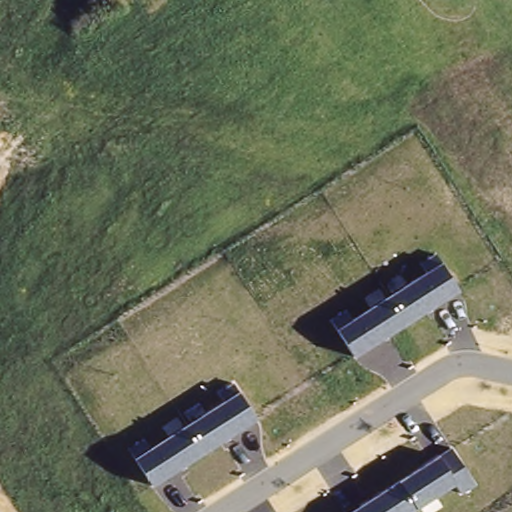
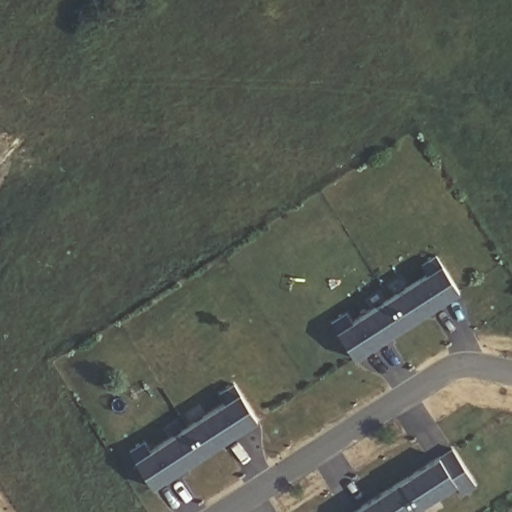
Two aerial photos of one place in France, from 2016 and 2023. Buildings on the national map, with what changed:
unchanged [(333,322),(348,312),(353,319),(428,270),(423,262),(437,253),(460,290),(355,357),(333,322)]
unchanged [(129,450),(145,440),(150,448),(225,400),(218,392),(234,382),(256,419),(153,487),(129,450)]
unchanged [(453,448),(475,485),(460,493),(454,483),(410,512),(353,512),(453,448)]

